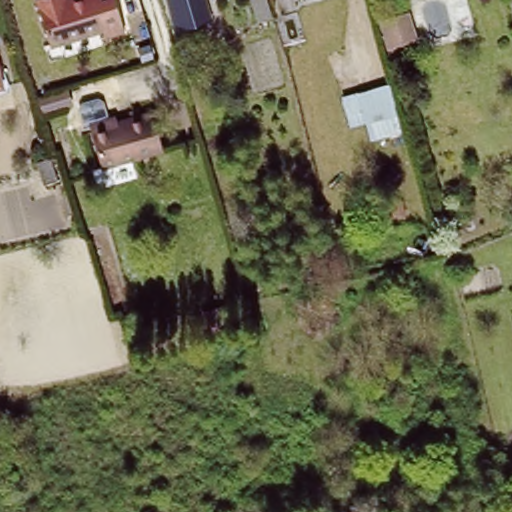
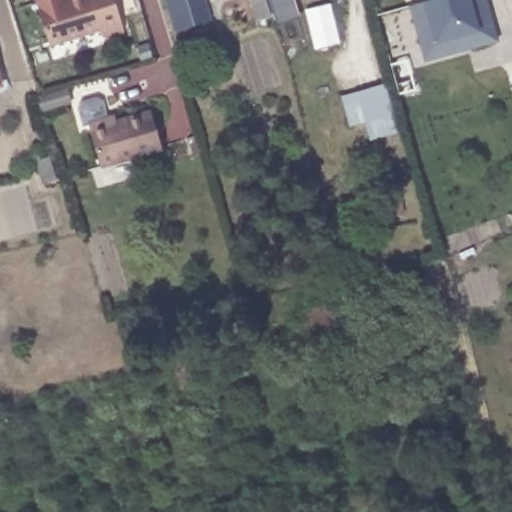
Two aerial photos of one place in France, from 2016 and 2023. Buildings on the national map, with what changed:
unchanged [(105,37),(103,31),(51,46),(38,2),(38,0),(115,0),(125,32),(105,37)]
unchanged [(205,49),(185,55),(170,6),(191,0),(209,0),(216,28),(200,32),(205,49)]
unchanged [(260,19),(255,0),(274,0),(277,15),(260,19)]
new [(408,7),(432,0),(487,0),(500,42),(425,63),(408,7)]
unchanged [(512,0),(512,12),(508,0),(512,0)]
demolished [(386,47),(378,18),(394,14),(401,43),(386,47)]
unchanged [(0,82),(0,53),(6,81),(0,82)]
unchanged [(396,115),(401,132),(370,140),(365,121),(347,125),(341,96),(358,91),(388,82),(396,115)]
unchanged [(106,174),(95,131),(82,134),(78,122),(81,117),(104,111),(109,114),(113,131),(153,120),(163,157),(106,174)]

